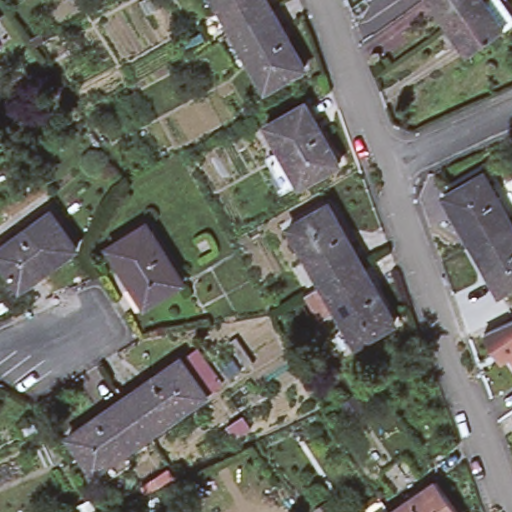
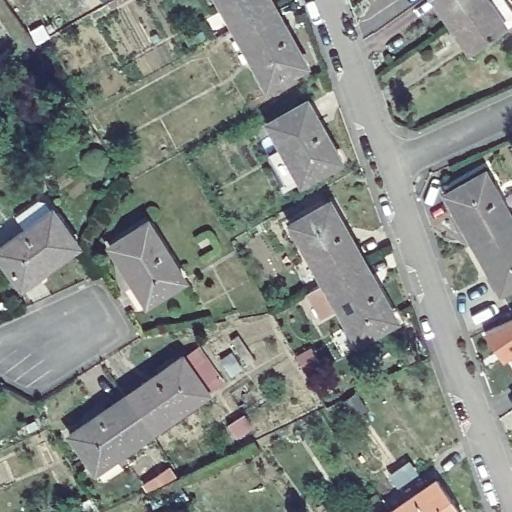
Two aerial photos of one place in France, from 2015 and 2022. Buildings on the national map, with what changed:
unchanged [(264,0),(269,9),(229,31),(212,0),(264,0)]
unchanged [(437,0),(503,0),(512,12),(512,21),(506,25),(471,49),(451,20),(437,0)]
unchanged [(229,31),(269,9),(302,69),(263,90),(229,31)]
unchanged [(269,126),(308,104),(341,164),(302,185),(269,126)]
unchanged [(441,202),(479,179),(508,229),(469,250),(441,202)]
unchanged [(352,339),(334,306),(318,315),(303,290),(319,281),(286,222),(325,200),(359,259),(392,318),(352,339)]
unchanged [(0,247),(48,214),(74,252),(18,289),(0,263),(0,247)]
unchanged [(105,245),(143,221),(181,280),(143,304),(105,245)]
unchanged [(512,235),(512,292),(498,300),(469,250),(508,229),(512,235)]
unchanged [(505,356),(499,348),(487,329),(512,316),(512,351),(505,356)]
unchanged [(168,366),(169,367),(188,354),(213,389),(194,402),(138,441),(112,404),(168,366)]
unchanged [(56,442),(112,404),(138,441),(82,479),(56,442)]
unchanged [(231,427),(248,416),(256,428),(239,439),(231,427)]
unchanged [(432,482),(454,512),(388,512),(432,482)]
unchanged [(316,507),(327,499),(336,512),(319,512),(316,507)]

